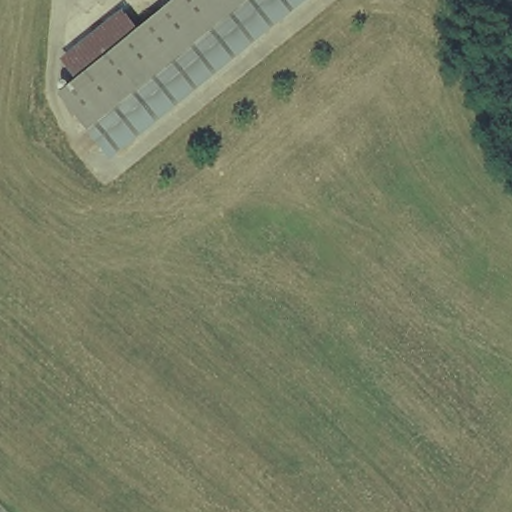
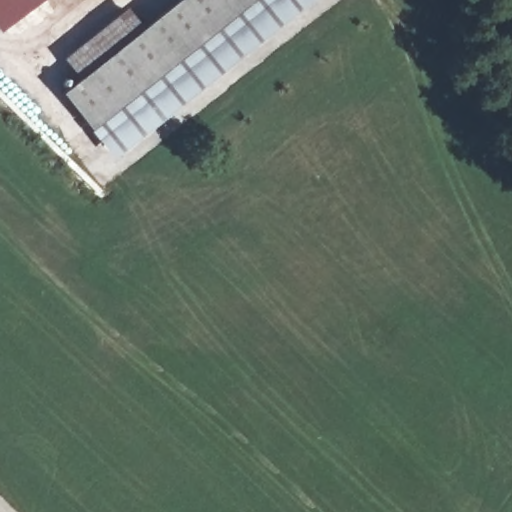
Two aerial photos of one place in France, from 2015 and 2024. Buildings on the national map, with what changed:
new [(0,26),(0,0),(36,0),(0,27),(0,26)]
unchanged [(70,89),(83,79),(145,30),(184,0),(320,0),(123,156),(70,89)]
unchanged [(83,79),(66,54),(128,8),(145,30),(83,79)]

